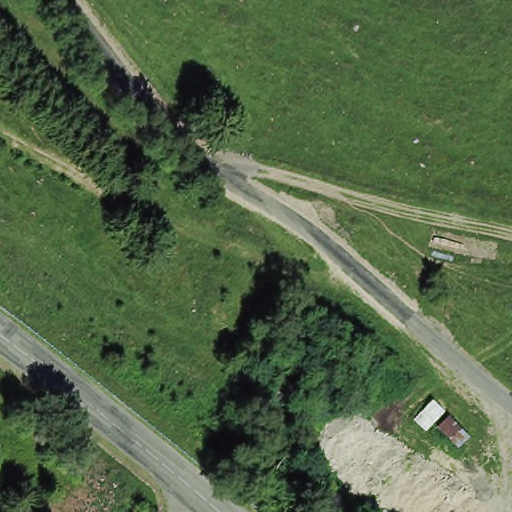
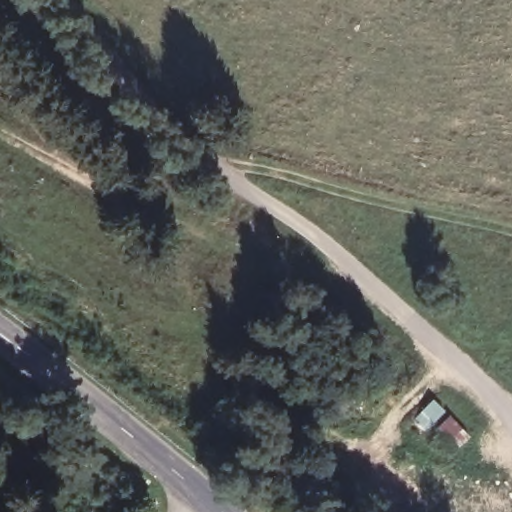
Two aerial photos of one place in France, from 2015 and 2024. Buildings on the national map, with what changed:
unchanged [(419,417),(437,400),(447,410),(429,427),(419,417)]
unchanged [(469,432),(459,442),(442,426),(452,415),(469,432)]

